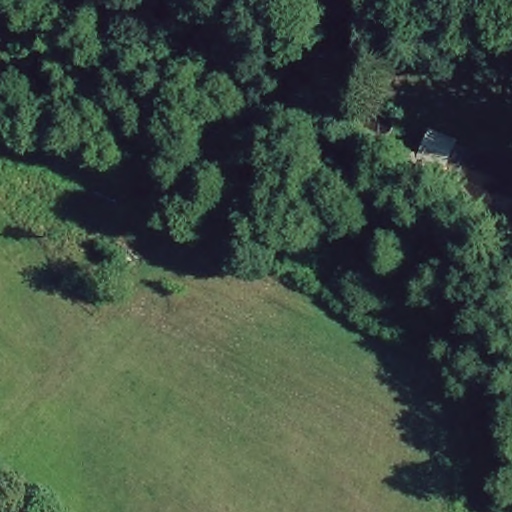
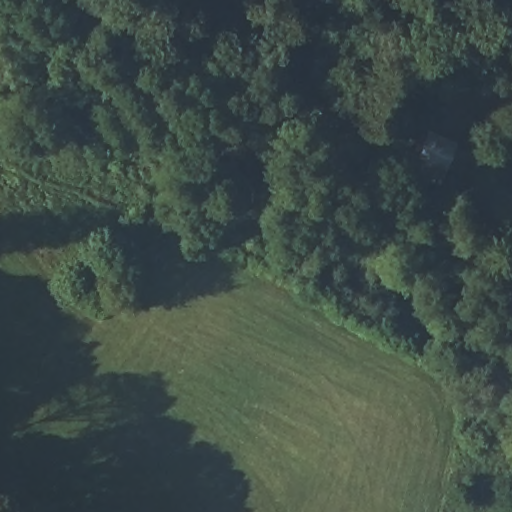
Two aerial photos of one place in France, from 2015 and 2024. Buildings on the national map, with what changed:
unchanged [(450,169),(422,161),(428,135),(456,142),(450,169)]

